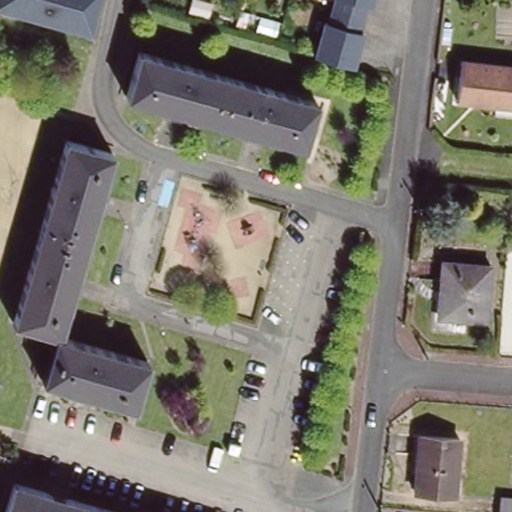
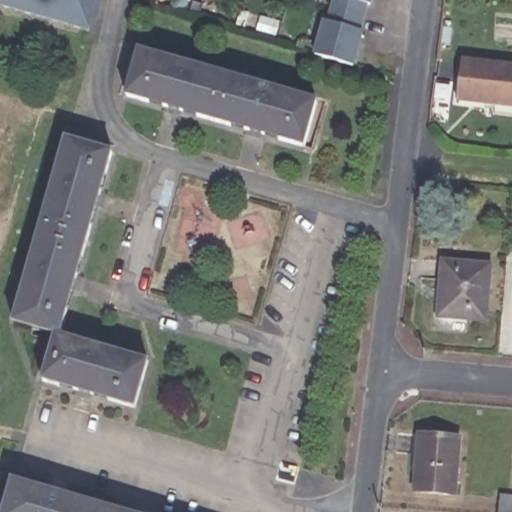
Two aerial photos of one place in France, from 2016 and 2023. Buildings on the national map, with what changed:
unchanged [(85,34),(85,35),(0,8),(0,0),(95,0),(86,31),(85,34)]
unchanged [(315,55),(318,45),(325,20),(328,21),(334,0),(371,0),(371,1),(370,4),(366,2),(364,9),(359,28),(358,30),(362,31),(355,56),(352,66),(315,55)]
unchanged [(256,135),(246,131),(183,114),(170,110),(166,110),(125,98),(138,54),(314,104),(302,147),(264,136),(256,135)]
unchanged [(512,106),(457,100),(461,62),(512,67),(512,106)]
unchanged [(67,142),(113,155),(101,195),(96,214),(85,255),(56,246),(54,246),(38,242),(67,142)]
unchanged [(78,279),(75,291),(73,297),(62,340),(149,363),(136,410),(96,399),(95,399),(78,394),(44,384),(57,338),(14,326),(38,242),(54,246),(56,246),(85,255),(78,279)]
unchanged [(439,286),(441,262),(484,265),(479,320),(446,316),(436,316),(439,286)]
unchanged [(423,437),(461,443),(453,497),(414,492),(423,437)]
unchanged [(11,487),(50,498),(58,500),(63,501),(101,512),(4,512),(11,487)]
unchanged [(493,495),(512,496),(512,512),(492,512),(493,495)]

